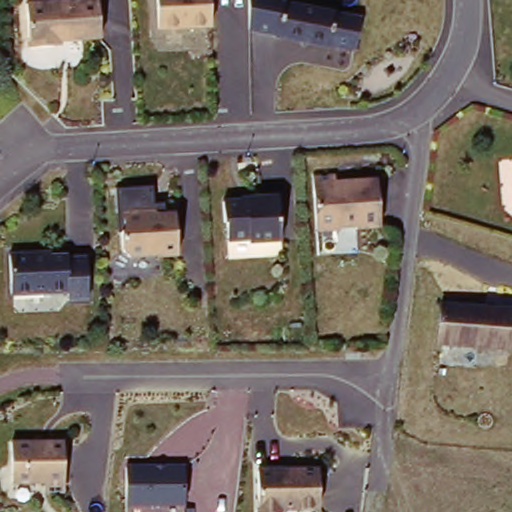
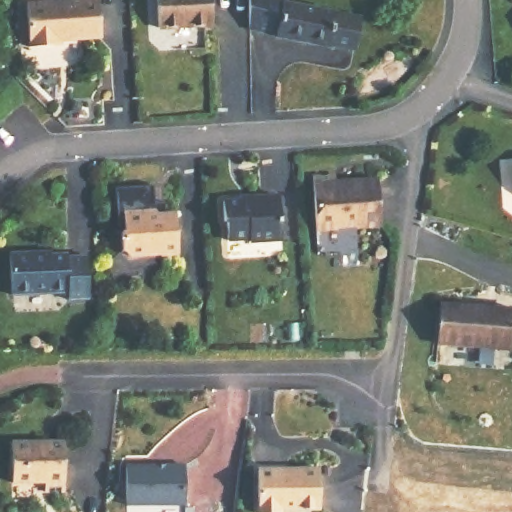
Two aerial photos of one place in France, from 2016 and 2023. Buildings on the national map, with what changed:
unchanged [(53,44),(30,45),(26,0),(27,0),(99,0),(101,36),(60,39),(60,44),(53,44)]
unchanged [(158,0),(211,0),(212,31),(159,32),(158,0)]
unchanged [(361,25),(354,57),(330,51),(329,54),(277,42),(285,8),(361,25)]
unchanged [(337,175),(338,183),(380,179),(383,227),(359,228),(359,226),(340,228),(340,230),(320,232),(315,177),(337,175)]
unchanged [(254,195),(254,193),(281,191),(283,236),(284,246),(279,251),(231,254),(230,239),(230,236),(229,217),(226,217),(225,196),(254,195)]
unchanged [(158,209),(162,213),(179,211),(181,253),(163,255),(163,253),(133,256),(126,249),(125,230),(128,231),(126,212),(158,209)]
unchanged [(38,253),(38,255),(71,254),(71,257),(90,256),(92,299),(72,300),(71,292),(15,295),(13,254),(38,253)]
unchanged [(512,310),(512,351),(440,346),(443,305),(512,310)]
unchanged [(64,493),(45,493),(45,482),(12,484),(12,441),(64,441),(64,493)]
unchanged [(185,507),(126,507),(125,465),(185,466),(185,507)]
unchanged [(282,511),(282,512),(257,512),(257,471),(320,469),(320,511),(282,511)]

